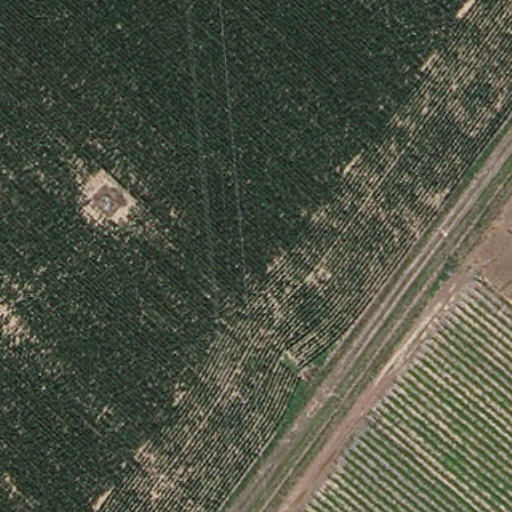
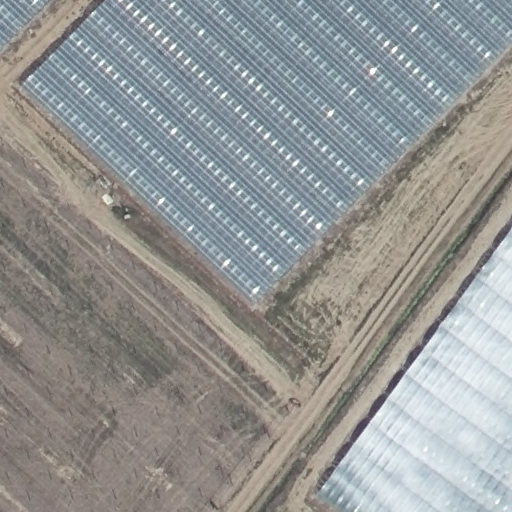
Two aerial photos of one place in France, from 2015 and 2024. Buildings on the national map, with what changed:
new [(0,49),(0,0),(49,0),(0,49)]
new [(512,43),(252,304),(21,84),(105,0),(512,0),(512,43)]
new [(512,228),(512,512),(335,512),(315,498),(512,228)]

